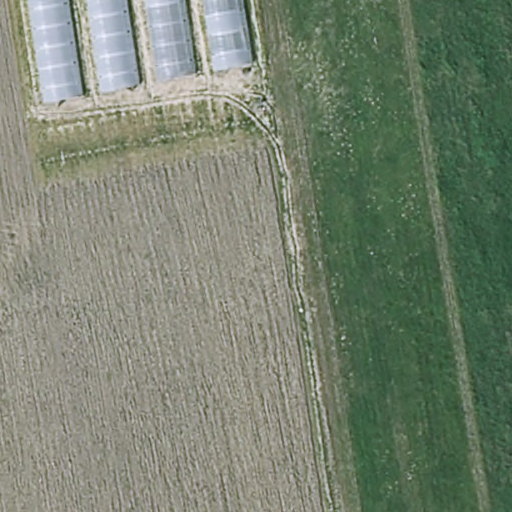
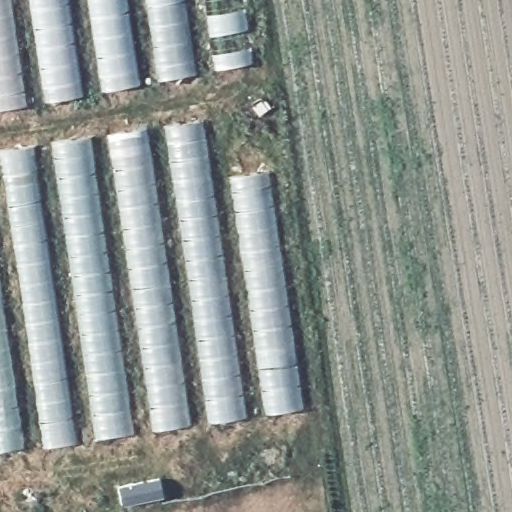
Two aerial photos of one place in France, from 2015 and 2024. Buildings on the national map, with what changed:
new [(0,109),(0,0),(8,0),(24,105),(0,109)]
unchanged [(45,101),(30,0),(241,0),(251,61),(45,101)]
new [(0,154),(200,120),(208,180),(266,172),(301,408),(0,463),(0,154)]

